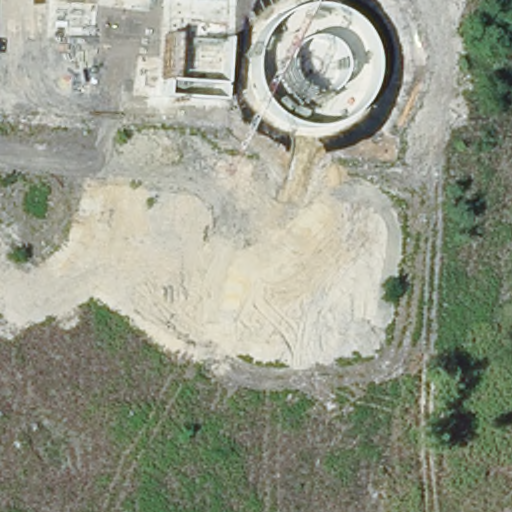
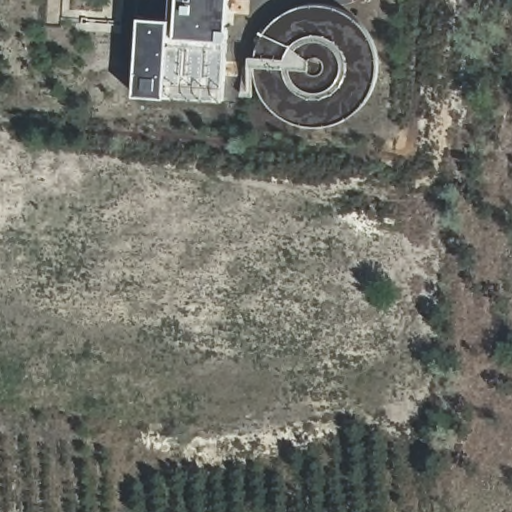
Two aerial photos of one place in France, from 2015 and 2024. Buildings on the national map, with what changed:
new [(223,99),(166,96),(135,95),(141,16),(171,18),(172,0),(231,0),(228,39),(223,99)]
unchanged [(278,16),(298,7),(319,4),(337,8),(352,14),(369,31),(378,53),(377,75),(371,98),(353,116),(335,125),(315,128),(296,124),(281,117),(267,105),(259,91),(255,73),(255,55),(260,44),(270,25),(278,16)]

